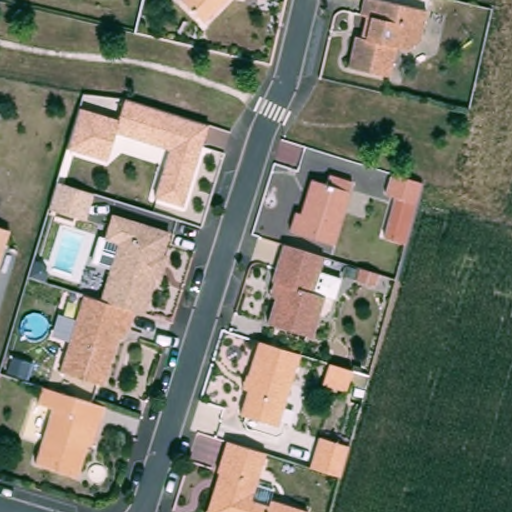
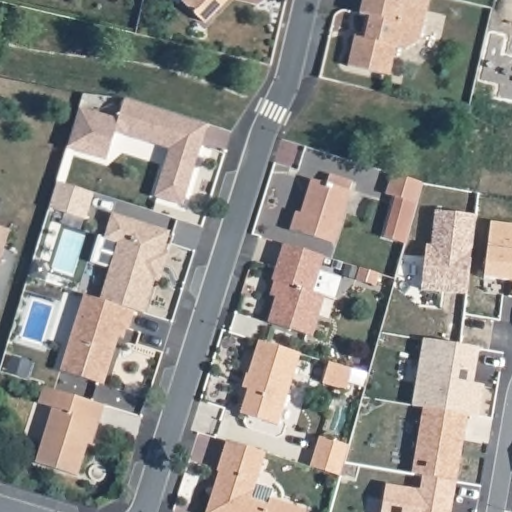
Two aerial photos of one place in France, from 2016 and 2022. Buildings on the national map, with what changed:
unchanged [(204,22),(180,0),(181,0),(225,0),(219,6),(204,22)]
unchanged [(407,48),(397,45),(390,75),(348,65),(355,35),(360,13),(364,0),(389,0),(427,9),(419,40),(407,48)]
unchanged [(183,206),(155,197),(170,149),(116,132),(107,160),(67,148),(80,108),(103,115),(110,94),(209,125),(198,158),(195,169),(183,206)]
unchanged [(384,237),(389,221),(396,197),(386,194),(393,174),(423,183),(417,204),(410,227),(406,244),(384,237)]
unchanged [(333,244),(289,230),(295,212),(301,214),(312,180),(327,185),(330,175),(352,182),(333,244)]
unchanged [(90,220),(54,208),(62,182),(98,193),(90,220)]
unchanged [(154,281),(149,279),(138,314),(129,311),(96,300),(115,242),(101,238),(108,215),(164,232),(157,254),(162,256),(154,281)]
new [(484,278),(490,222),(512,225),(512,281),(484,278)]
unchanged [(0,225),(9,228),(0,258),(0,225)]
unchanged [(278,244),(319,257),(314,272),(335,279),(329,299),(320,296),(307,337),(263,323),(271,297),(265,296),(269,281),(267,280),(278,244)]
unchanged [(378,274),(375,286),(356,280),(359,268),(378,274)]
unchanged [(121,329),(118,338),(113,337),(98,385),(59,372),(83,296),(96,300),(129,311),(123,330),(121,329)]
new [(423,339),(479,348),(475,368),(420,359),(423,339)]
unchanged [(261,341),(262,342),(300,354),(277,425),(240,413),(248,389),(243,387),(247,374),(248,375),(259,341),(261,341)]
new [(420,359),(475,368),(473,384),(484,385),(479,417),(467,415),(423,407),(412,406),(420,359)]
unchanged [(352,370),(345,390),(323,383),(329,363),(352,370)]
unchanged [(83,444),(73,477),(31,463),(48,408),(34,403),(39,387),(100,406),(95,422),(88,446),(83,444)]
new [(423,407),(467,415),(456,482),(422,476),(412,474),(423,407)]
unchanged [(349,446),(350,446),(341,476),(311,467),(319,436),(349,446)]
unchanged [(217,471),(227,441),(247,447),(266,453),(251,500),(268,505),(270,499),(306,511),(306,512),(207,512),(219,472),(217,471)]
new [(381,512),(385,485),(419,491),(422,476),(456,482),(451,512),(381,512)]

